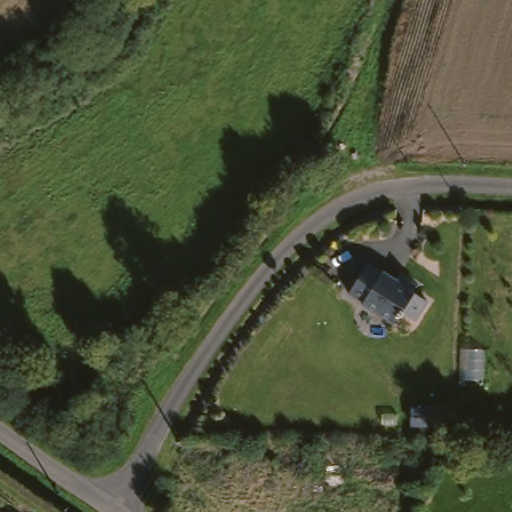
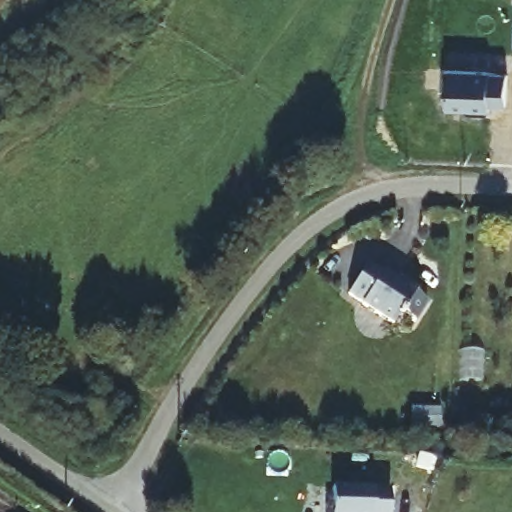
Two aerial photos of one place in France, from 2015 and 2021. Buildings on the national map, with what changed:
new [(507,108),(490,107),(490,111),(489,116),(469,115),(465,111),(447,110),(448,94),(442,93),(443,72),(450,72),(450,69),(490,71),(490,74),(507,75),(507,108)]
unchanged [(397,305),(396,308),(393,307),(387,315),(355,296),(357,295),(342,287),(360,256),(375,265),(375,263),(389,271),(392,266),(410,276),(406,282),(421,291),(410,311),(397,305)]
new [(334,506),(333,489),(357,488),(356,485),(375,485),(375,488),(392,488),(392,512),(328,512),(328,506),(334,506)]
unchanged [(33,512),(26,512),(29,508),(33,512)]

